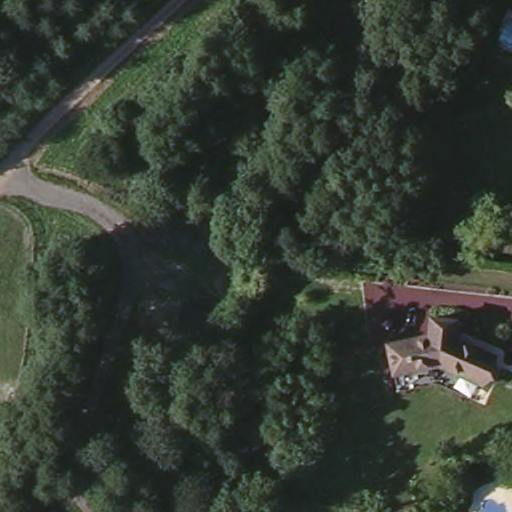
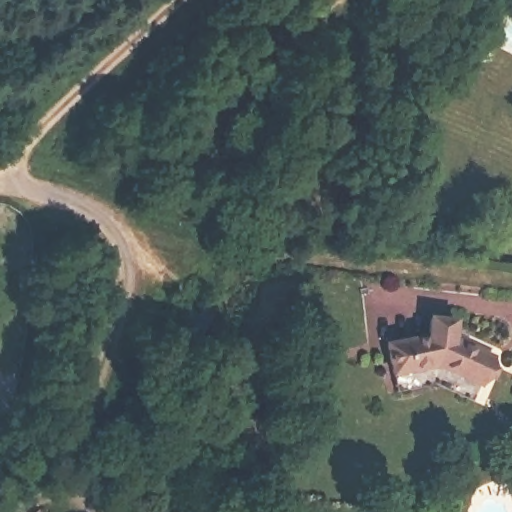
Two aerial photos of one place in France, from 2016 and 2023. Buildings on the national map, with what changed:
unchanged [(385,339),(420,336),(423,314),(455,318),(453,338),(496,354),(483,384),(436,367),(390,373),(385,339)]
unchanged [(270,437),(254,450),(240,427),(255,415),(270,437)]
unchanged [(41,512),(38,512),(40,510),(41,512)]

